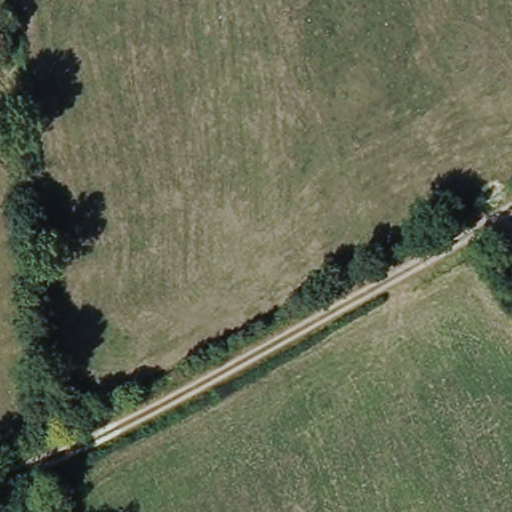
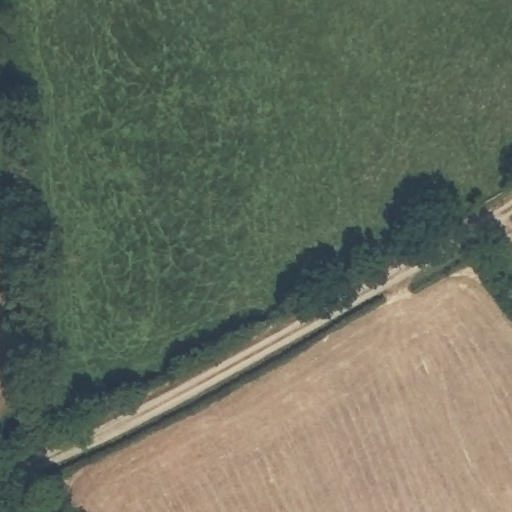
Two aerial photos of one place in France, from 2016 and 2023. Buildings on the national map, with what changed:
[]

